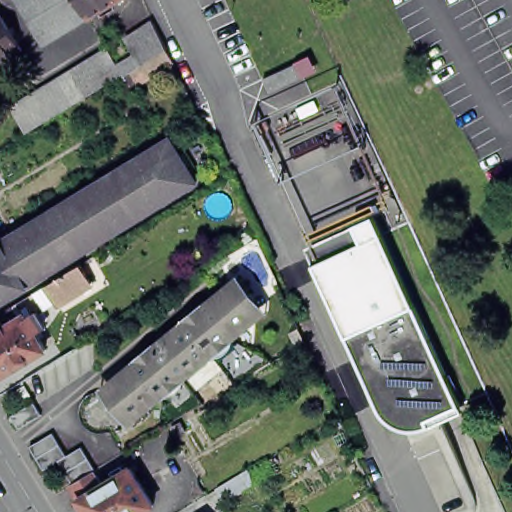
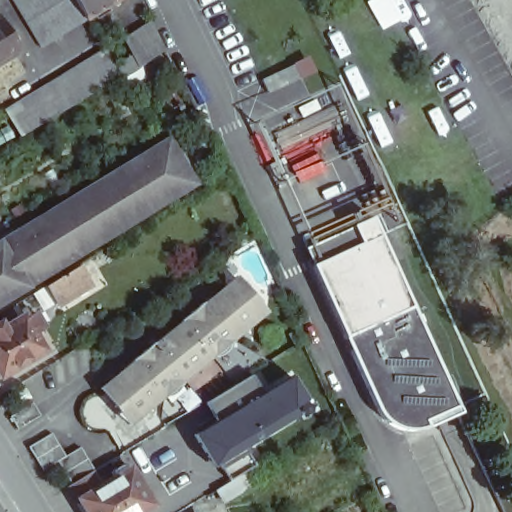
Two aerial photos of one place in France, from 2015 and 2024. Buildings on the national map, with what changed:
unchanged [(90,20),(45,47),(16,0),(79,0),(90,20)]
unchanged [(90,20),(79,0),(122,0),(90,20)]
unchanged [(0,68),(0,23),(20,56),(0,68)]
unchanged [(59,81),(105,52),(106,52),(115,66),(137,53),(128,38),(151,23),(165,50),(164,51),(170,62),(159,68),(161,71),(129,90),(121,76),(73,105),(63,111),(30,131),(16,107),(48,87),(59,81)]
unchanged [(311,59),(318,75),(271,95),(264,81),(311,59)]
unchanged [(194,189),(0,307),(0,247),(168,145),(194,189)]
unchanged [(429,427),(414,431),(402,431),(390,425),(381,417),(374,403),(311,265),(360,243),(359,240),(352,226),(372,217),(379,231),(459,407),(461,412),(429,427)]
unchanged [(79,270),(90,289),(57,309),(45,291),(79,270)]
unchanged [(185,321),(208,302),(211,307),(238,285),(263,314),(235,336),(238,341),(216,359),(213,355),(186,377),(190,381),(168,399),(165,395),(138,418),(112,387),(139,364),(136,361),(158,342),(163,348),(189,326),(185,321)]
unchanged [(20,324),(30,318),(39,333),(29,339),(39,356),(0,379),(0,331),(18,320),(20,324)]
new [(218,421),(206,403),(251,376),(262,395),(291,377),(304,400),(290,409),(294,416),(244,447),(255,466),(229,481),(218,462),(213,466),(194,436),(199,432),(218,421)]
unchanged [(33,403),(40,416),(18,429),(10,417),(33,403)]
unchanged [(130,471),(135,468),(158,505),(146,512),(91,512),(83,499),(74,485),(76,484),(63,461),(48,470),(34,447),(56,433),(70,456),(85,447),(100,470),(99,470),(108,484),(119,477),(115,472),(126,465),(130,471)]
unchanged [(256,485),(225,503),(217,489),(247,471),(256,485)]

